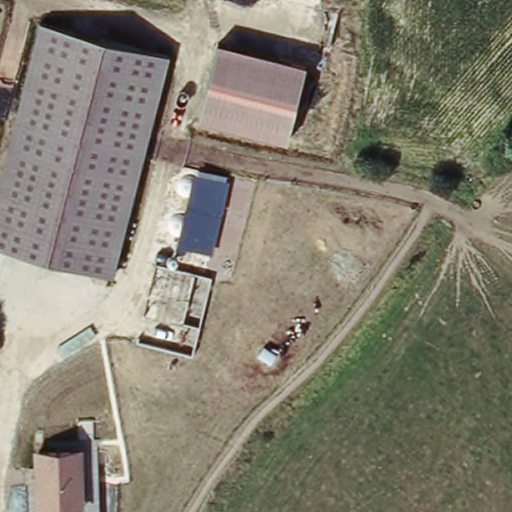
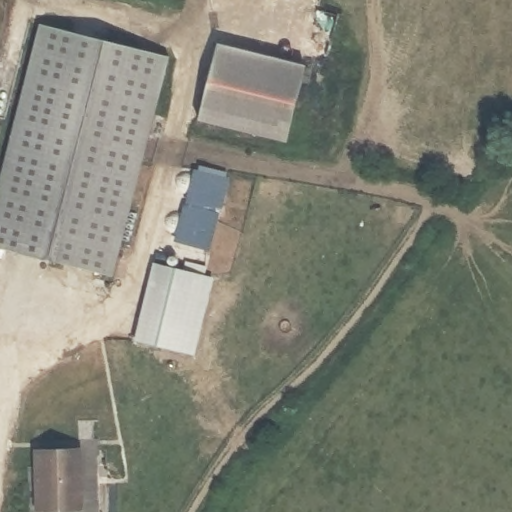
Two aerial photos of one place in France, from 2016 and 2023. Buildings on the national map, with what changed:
unchanged [(117,272),(0,241),(0,184),(42,23),(173,56),(117,272)]
unchanged [(287,141),(199,119),(217,44),(306,65),(287,141)]
unchanged [(226,179),(209,252),(174,244),(191,172),(226,179)]
new [(194,358),(135,343),(152,263),(212,277),(194,358)]
unchanged [(84,512),(34,512),(32,451),(82,449),(84,512)]

